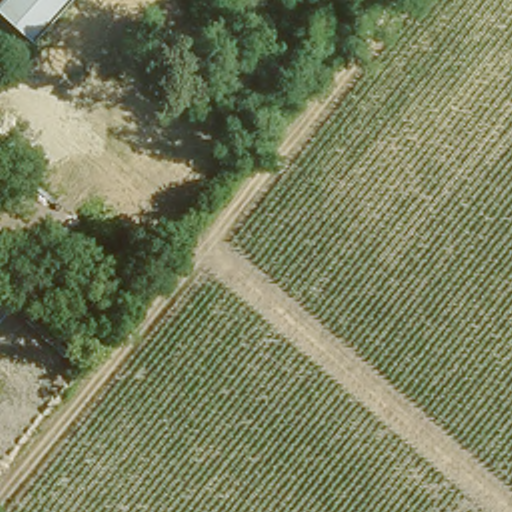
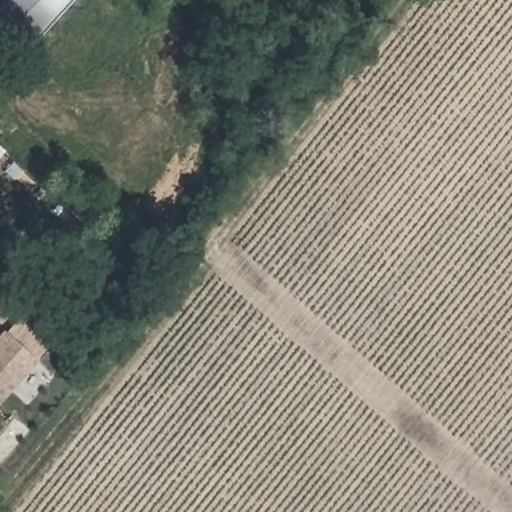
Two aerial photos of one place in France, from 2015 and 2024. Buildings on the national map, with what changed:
unchanged [(0,19),(0,0),(76,0),(30,48),(0,19)]
new [(0,331),(1,329),(36,361),(0,400),(0,331)]

